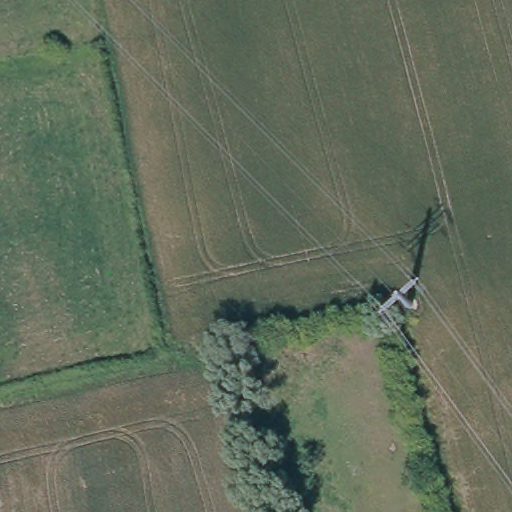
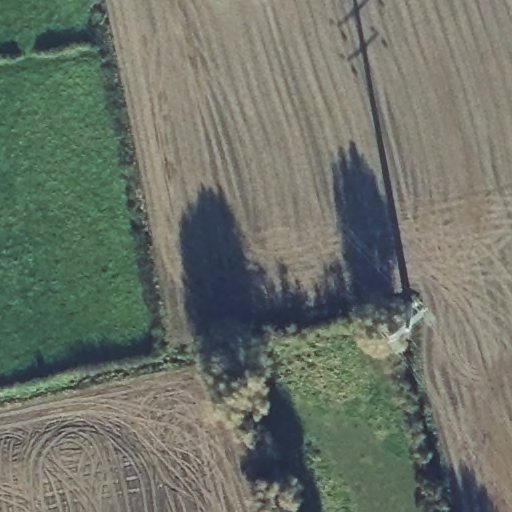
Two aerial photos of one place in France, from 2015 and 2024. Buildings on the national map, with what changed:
[]

